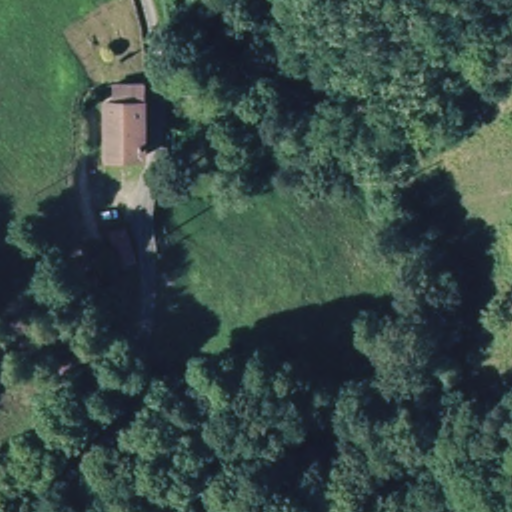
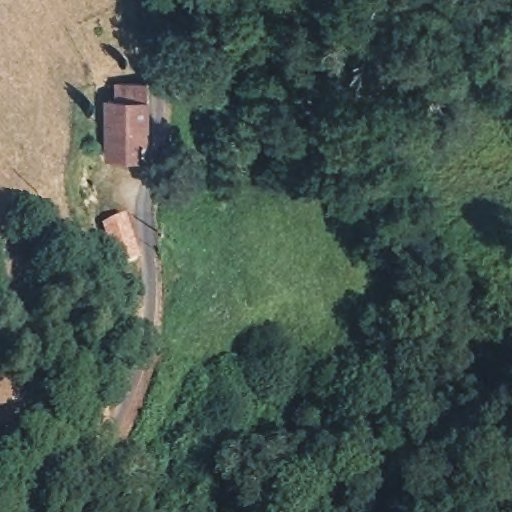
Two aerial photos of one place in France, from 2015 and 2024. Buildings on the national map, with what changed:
unchanged [(111,155),(109,97),(117,97),(116,86),(135,85),(135,108),(134,156),(111,155)]
unchanged [(103,233),(98,204),(117,200),(122,231),(103,233)]

